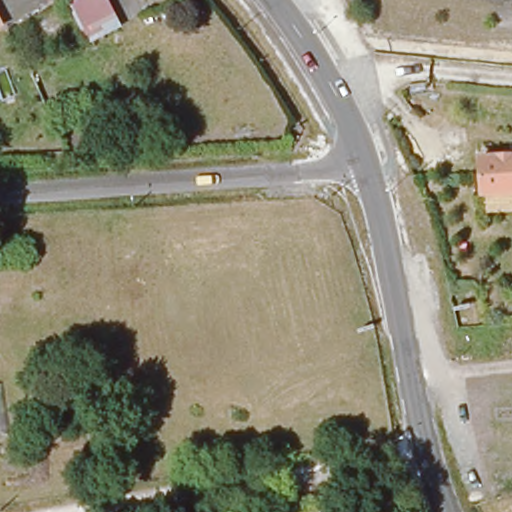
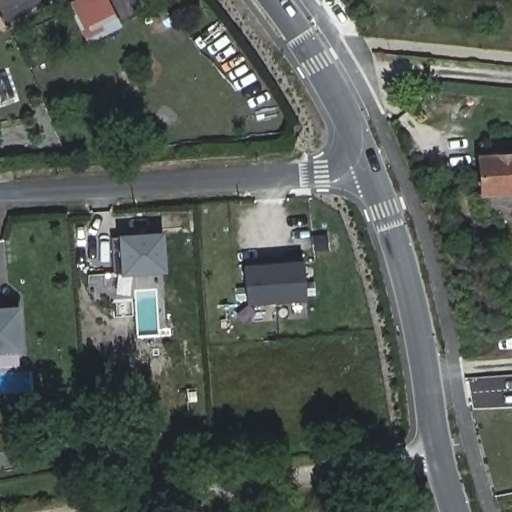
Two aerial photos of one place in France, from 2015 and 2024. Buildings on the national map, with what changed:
unchanged [(130,39),(108,49),(99,34),(91,40),(69,0),(111,0),(130,39)]
unchanged [(0,29),(0,17),(4,27),(0,29)]
unchanged [(512,150),(512,191),(478,193),(474,152),(512,150)]
new [(161,235),(164,272),(114,275),(111,239),(161,235)]
new [(300,262),(303,299),(244,303),(241,267),(300,262)]
new [(0,354),(0,307),(21,306),(24,352),(0,354)]
demolished [(6,435),(0,436),(0,385),(6,435)]

